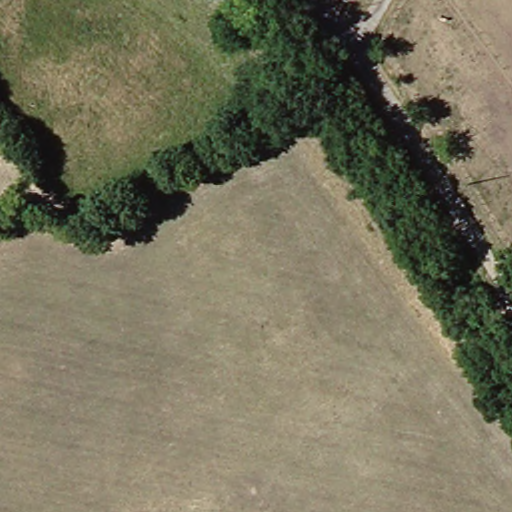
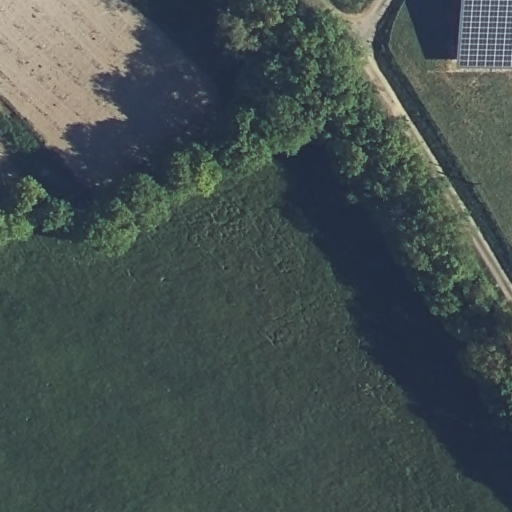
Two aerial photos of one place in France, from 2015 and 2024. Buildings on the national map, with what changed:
new [(454,0),(512,0),(512,70),(451,69),(454,0)]

